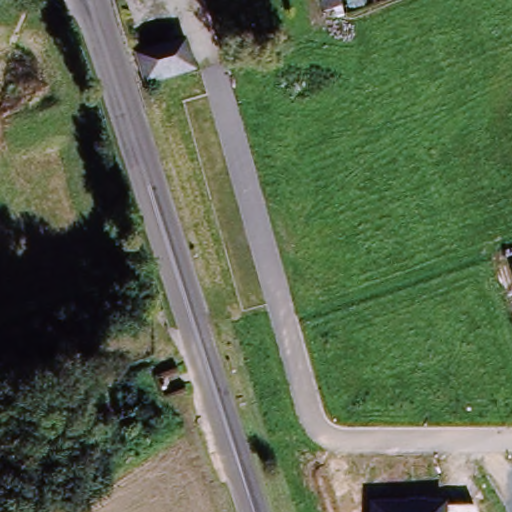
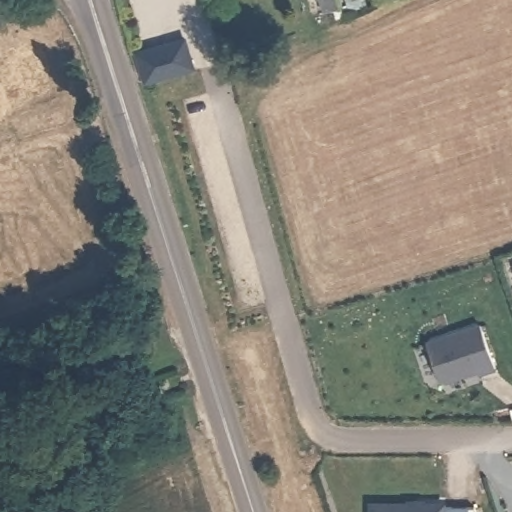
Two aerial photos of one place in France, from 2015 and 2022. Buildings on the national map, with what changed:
unchanged [(320,0),(338,0),(345,21),(339,24),(335,15),(326,19),(320,0)]
unchanged [(151,85),(142,57),(185,45),(195,72),(151,85)]
new [(477,322),(492,364),(477,371),(475,367),(440,379),(435,377),(422,339),(477,322)]
unchanged [(370,503),(472,505),(476,512),(370,512),(370,503)]

